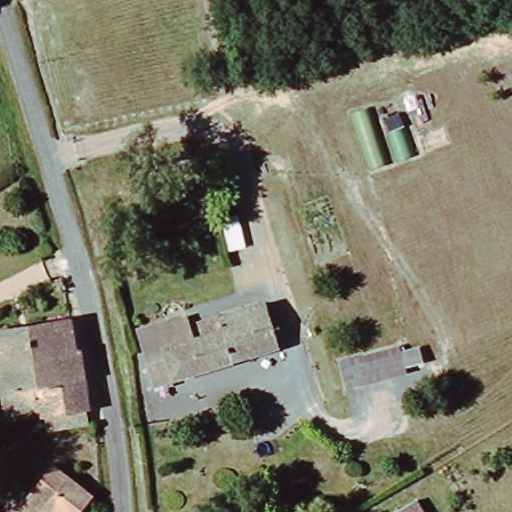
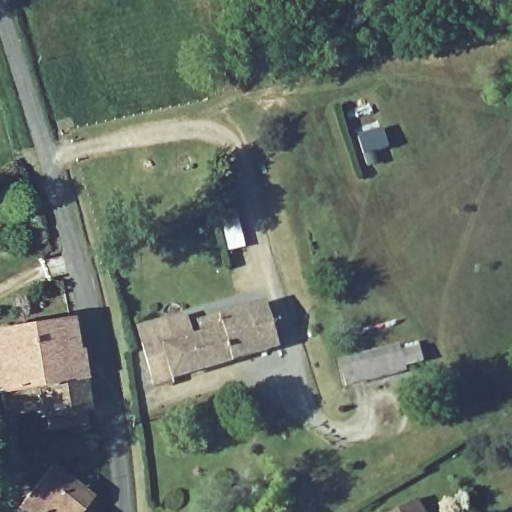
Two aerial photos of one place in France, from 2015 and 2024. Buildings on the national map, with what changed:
unchanged [(214,318),(261,302),(274,344),(151,385),(136,332),(162,323),(180,318),(186,337),(217,327),(214,318)]
unchanged [(85,352),(88,379),(39,387),(0,394),(0,329),(74,321),(80,352),(85,352)]
unchanged [(401,343),(410,374),(345,388),(341,361),(401,343)]
unchanged [(44,419),(39,387),(88,379),(92,411),(44,419)]
unchanged [(47,466),(86,499),(76,512),(18,512),(12,506),(47,466)]
unchanged [(423,512),(403,512),(416,502),(423,512)]

